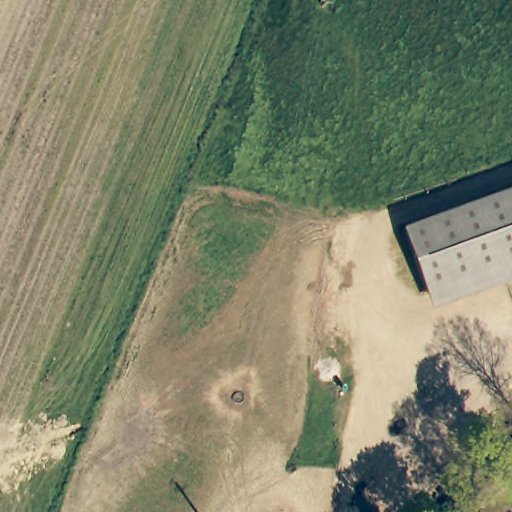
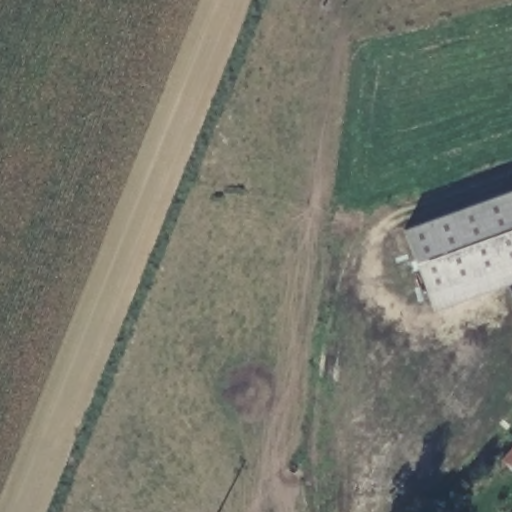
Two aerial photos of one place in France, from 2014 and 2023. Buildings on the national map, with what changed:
unchanged [(429,291),(408,229),(512,192),(512,261),(429,291)]

